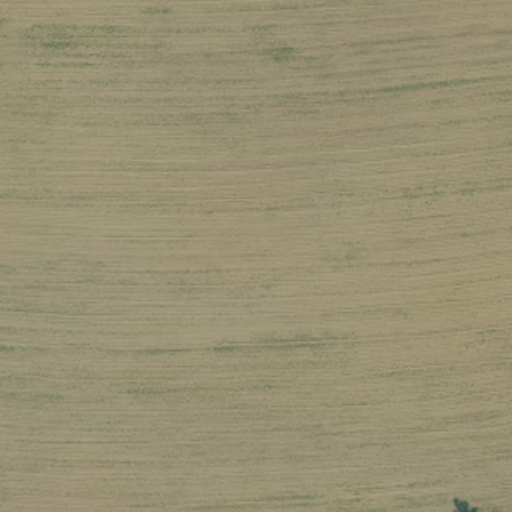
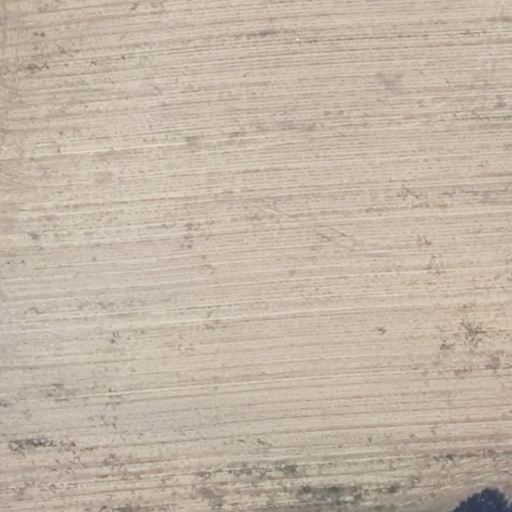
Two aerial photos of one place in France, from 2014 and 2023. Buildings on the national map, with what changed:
[]

